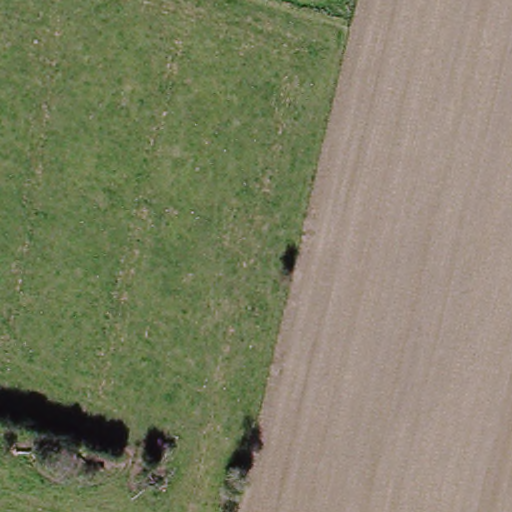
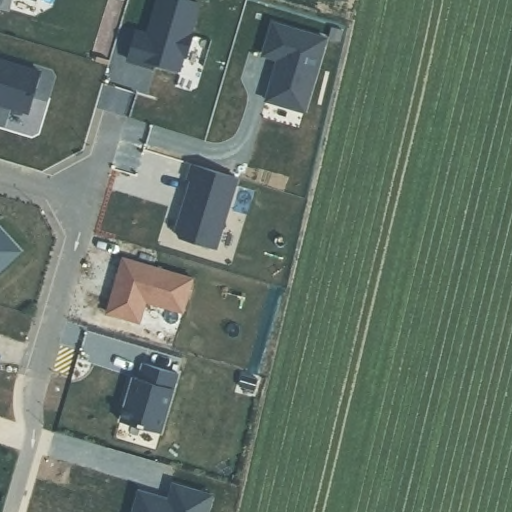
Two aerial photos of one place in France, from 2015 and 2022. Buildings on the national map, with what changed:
new [(189,36),(192,36),(185,58),(182,57),(178,72),(145,62),(144,67),(127,62),(135,33),(147,36),(157,0),(181,0),(198,5),(189,36)]
new [(303,113),(265,102),(272,80),(275,81),(277,74),(274,73),(278,61),(262,56),(272,25),(325,41),(303,113)]
new [(39,74),(27,114),(9,109),(10,106),(2,104),(1,106),(0,106),(0,62),(39,74)]
new [(175,234),(191,183),(187,182),(192,166),(236,180),(215,251),(179,240),(175,234)]
new [(18,253),(0,270),(0,233),(18,253)]
new [(121,240),(192,270),(180,301),(141,284),(130,313),(97,300),(121,240)]
new [(120,424),(132,380),(137,382),(142,366),(177,376),(158,436),(120,424)]

